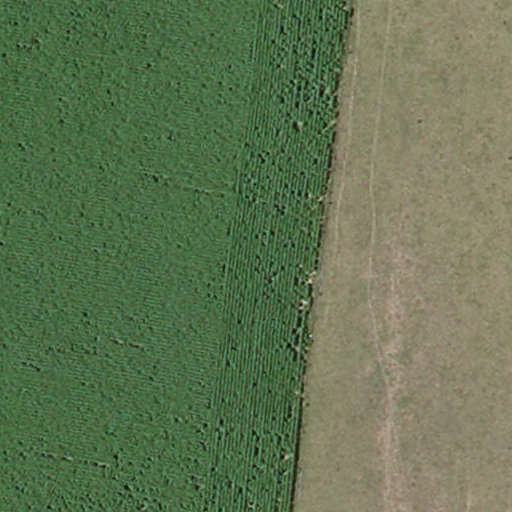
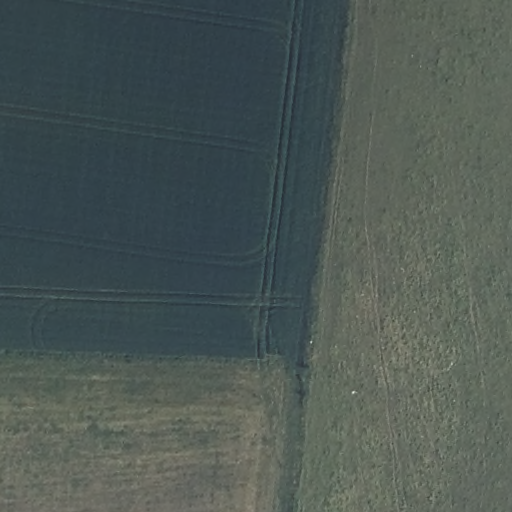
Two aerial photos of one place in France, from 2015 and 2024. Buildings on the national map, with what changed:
[]

